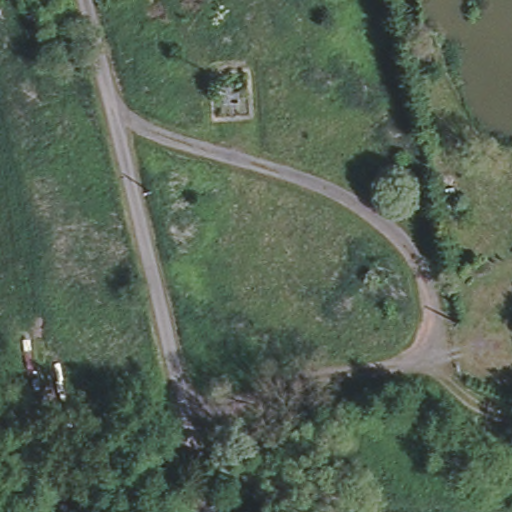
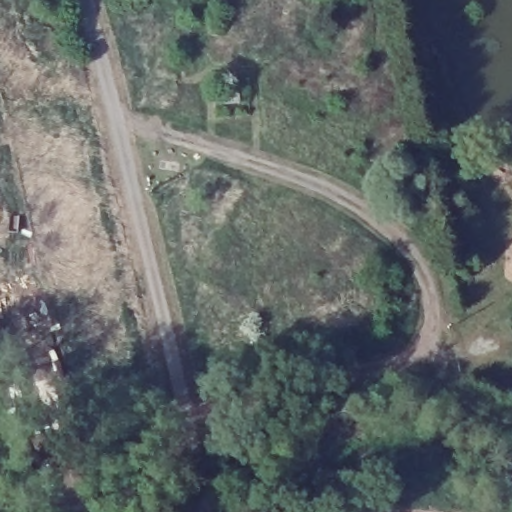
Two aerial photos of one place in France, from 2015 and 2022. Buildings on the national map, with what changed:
[]

